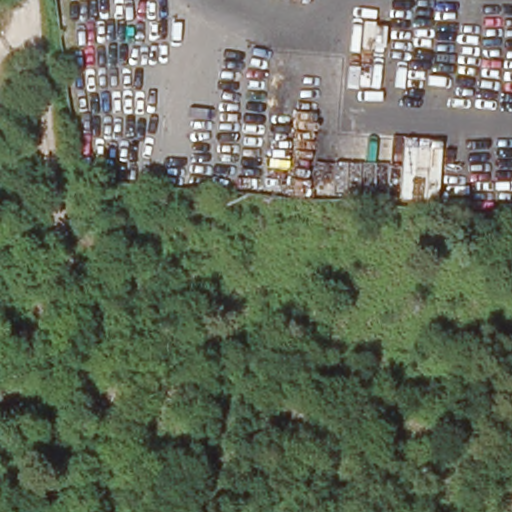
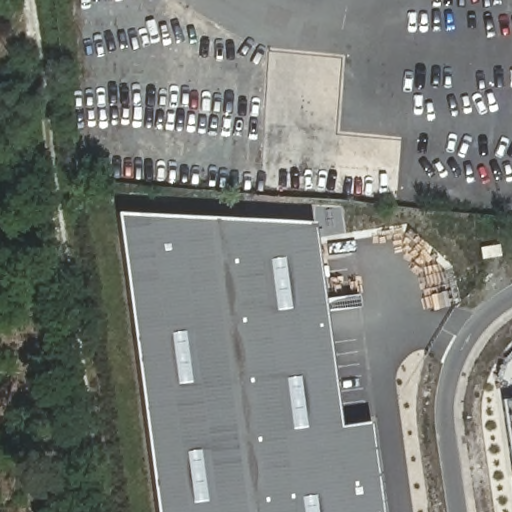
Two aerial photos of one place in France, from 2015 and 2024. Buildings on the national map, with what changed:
new [(314,225),(315,231),(341,425),(369,422),(383,512),(159,512),(119,215),(314,225)]
new [(512,398),(512,472),(501,400),(512,398)]

